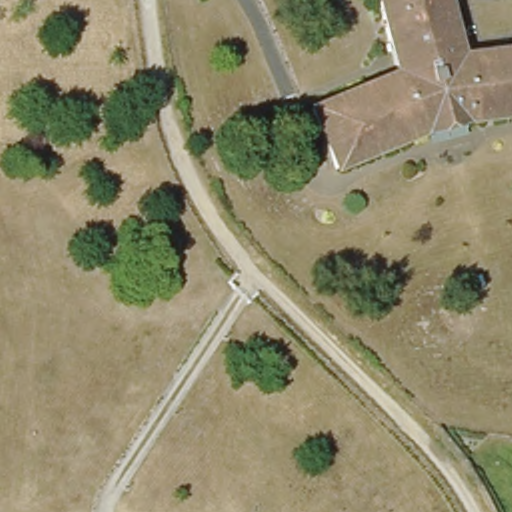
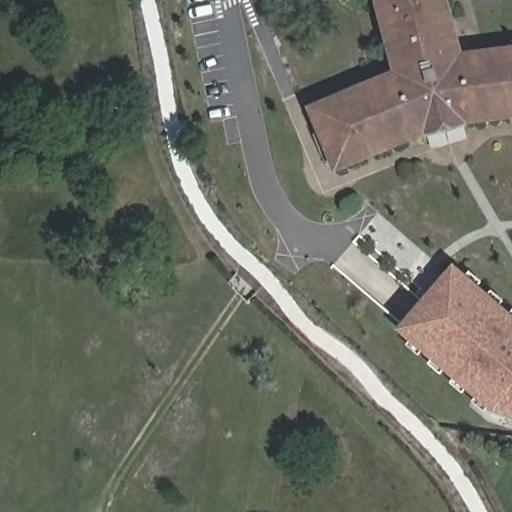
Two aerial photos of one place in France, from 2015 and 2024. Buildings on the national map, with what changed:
unchanged [(512,47),(512,112),(466,117),(420,130),(342,164),(316,104),(401,69),(384,0),(449,0),(462,52),(512,47)]
new [(397,330),(453,263),(512,314),(512,418),(493,413),(397,330)]

